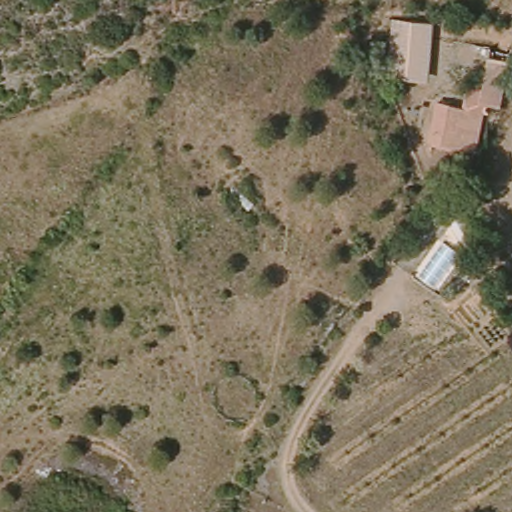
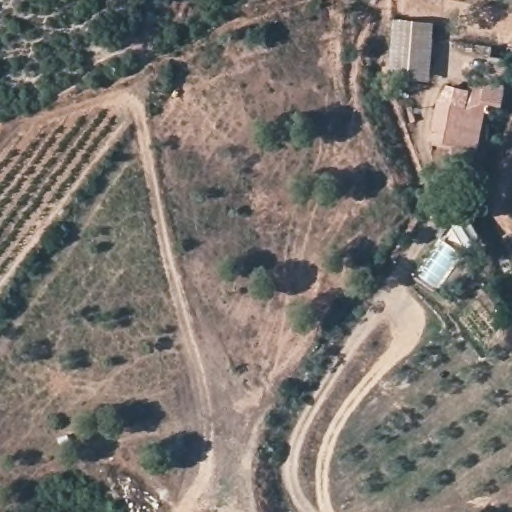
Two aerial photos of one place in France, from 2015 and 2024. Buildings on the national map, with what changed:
unchanged [(391,19),(433,24),(428,82),(386,79),(391,19)]
unchanged [(425,145),(430,99),(460,102),(465,85),(480,86),(486,54),(507,57),(500,108),(483,108),(480,155),(425,145)]

